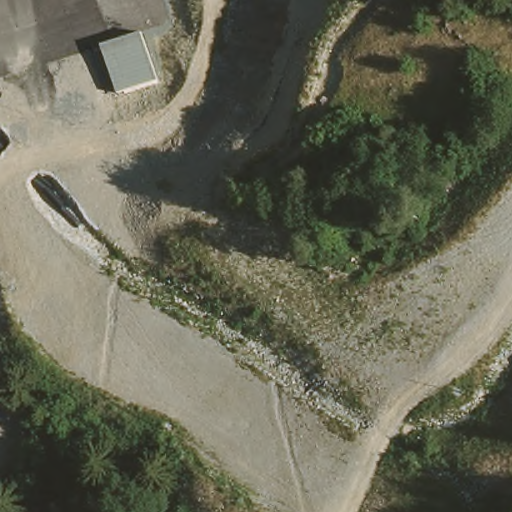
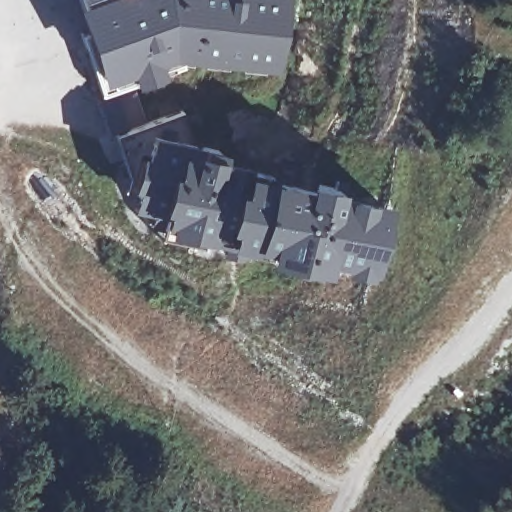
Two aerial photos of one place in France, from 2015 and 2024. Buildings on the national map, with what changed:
new [(72,0),(73,0),(288,0),(278,70),(180,57),(169,55),(156,60),(160,73),(131,82),(128,70),(98,79),(72,0)]
new [(182,115),(195,149),(247,161),(243,170),(389,205),(371,275),(343,270),(345,267),(326,262),(324,271),(262,254),(160,224),(130,211),(135,186),(127,186),(131,159),(117,136),(182,115)]

